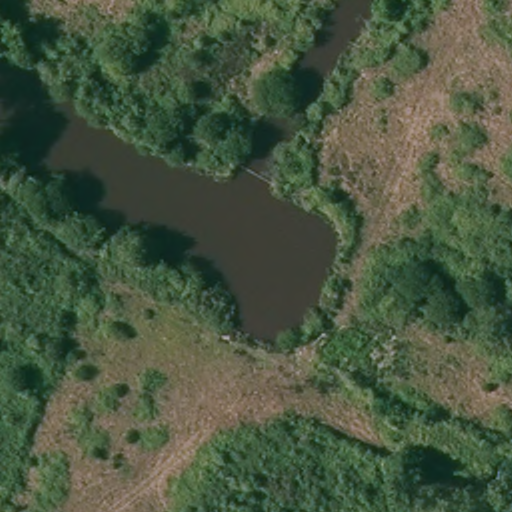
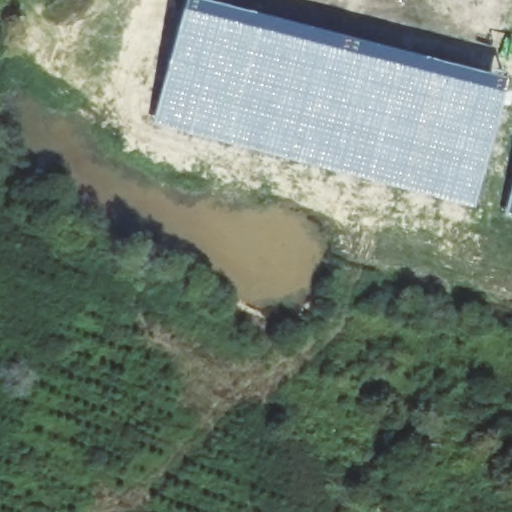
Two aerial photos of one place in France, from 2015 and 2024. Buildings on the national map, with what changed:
new [(184,0),(202,0),(307,28),(305,34),(287,30),(286,36),(293,38),(345,52),(418,71),(420,59),(505,80),(496,124),(475,197),(453,194),(449,201),(154,124),(184,0)]
new [(502,217),(512,182),(512,219),(502,217)]
demolished [(462,483),(466,462),(483,465),(484,457),(512,461),(512,469),(507,490),(462,483)]

